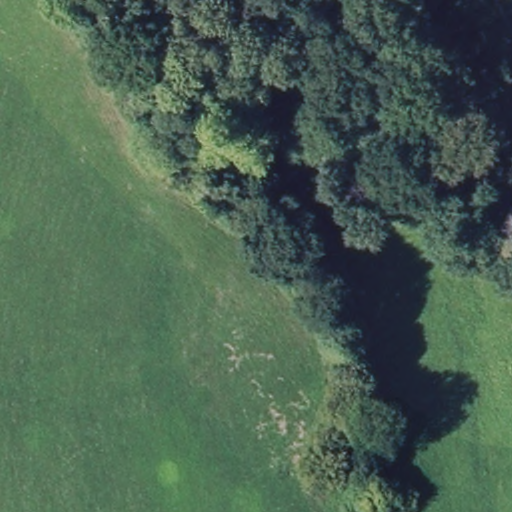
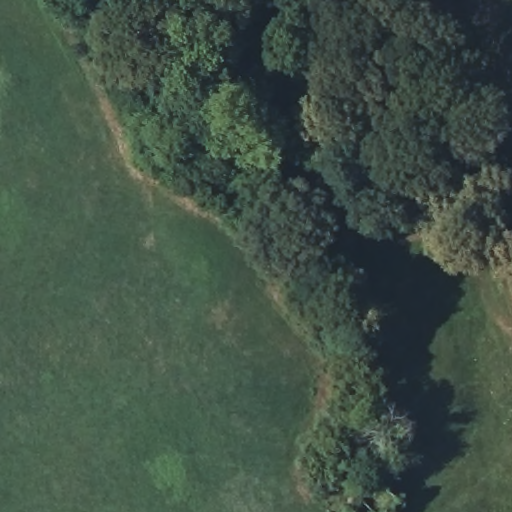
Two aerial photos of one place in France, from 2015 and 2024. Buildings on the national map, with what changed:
unchanged [(392,512),(346,512),(345,507),(381,489),(395,510),(392,512)]

